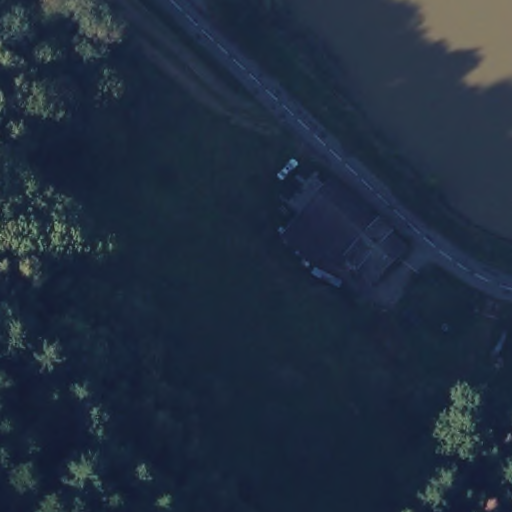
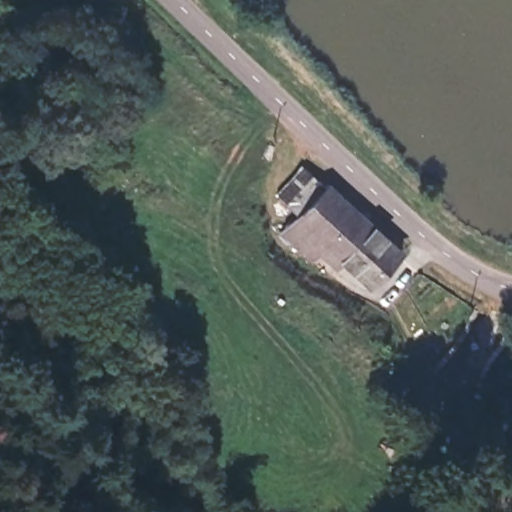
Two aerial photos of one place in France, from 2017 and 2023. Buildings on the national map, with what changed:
unchanged [(404,236),(380,270),(330,236),(317,255),(282,233),(286,227),(299,211),(280,199),(301,170),(320,184),(324,179),(404,236)]

